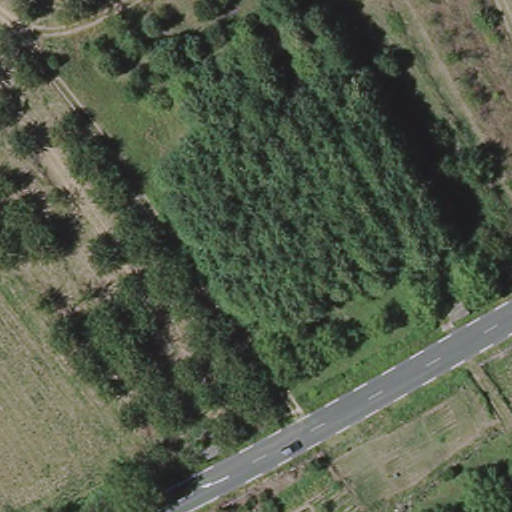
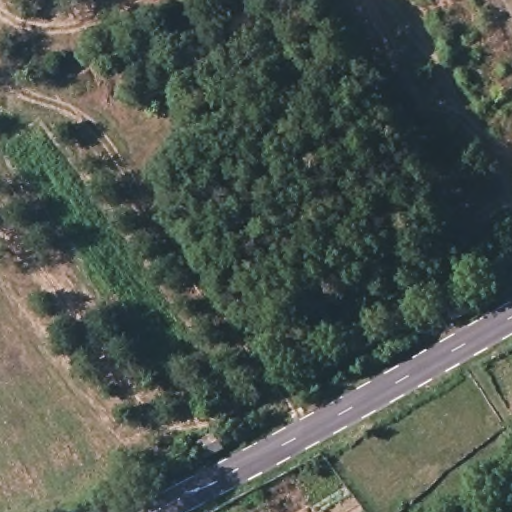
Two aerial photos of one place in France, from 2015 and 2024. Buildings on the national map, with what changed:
unchanged [(464,302),(472,317),(457,325),(450,310),(464,302)]
unchanged [(205,448),(209,443),(217,436),(230,452),(214,461),(205,448)]

